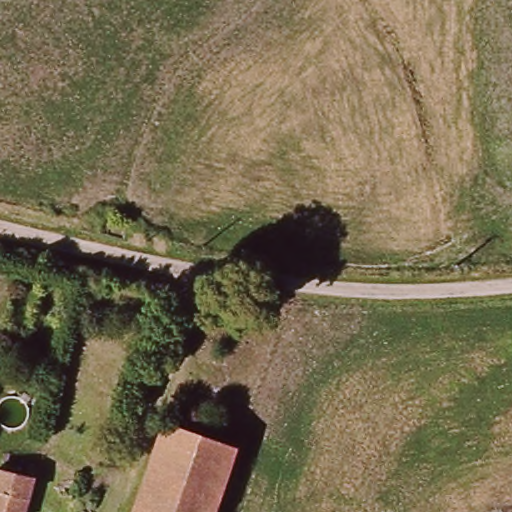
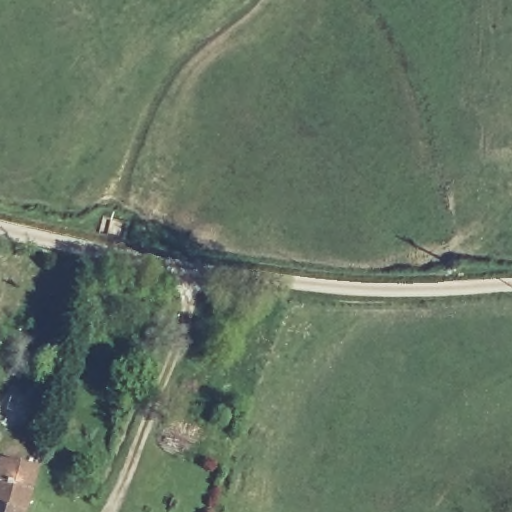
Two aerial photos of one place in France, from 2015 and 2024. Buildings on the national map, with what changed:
demolished [(213,512),(134,512),(166,420),(168,417),(237,443),(213,512)]
unchanged [(32,480),(28,496),(24,512),(0,512),(0,472),(32,480)]

